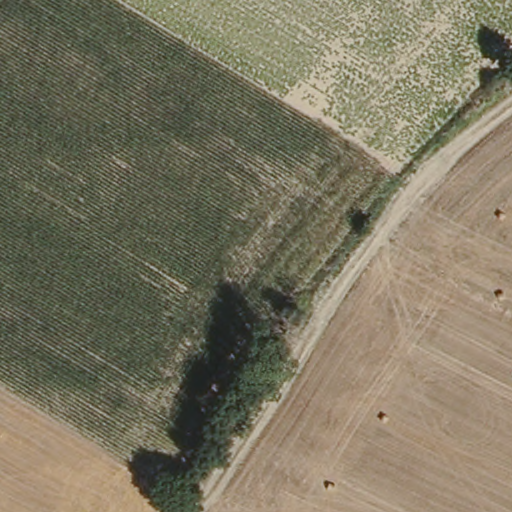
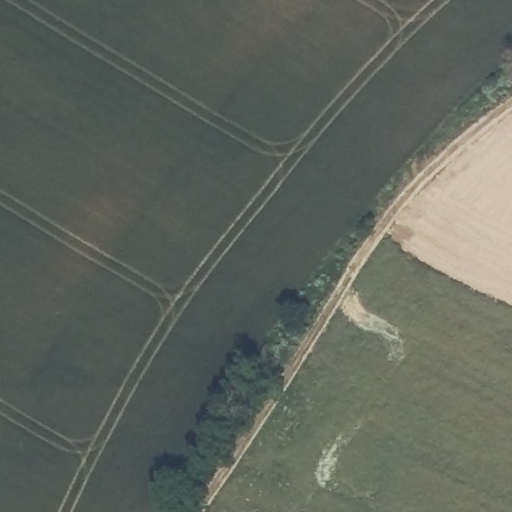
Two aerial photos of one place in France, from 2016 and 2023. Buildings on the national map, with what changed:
[]

